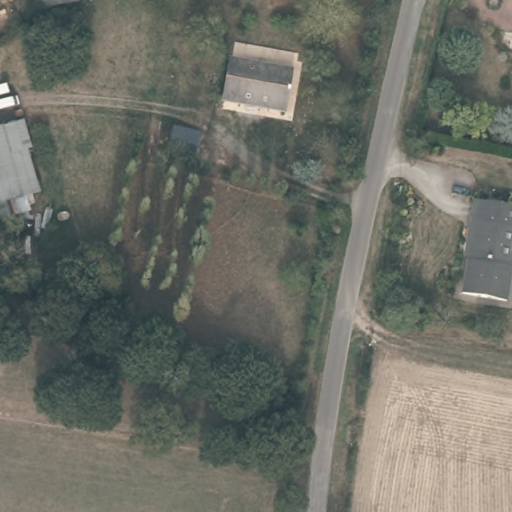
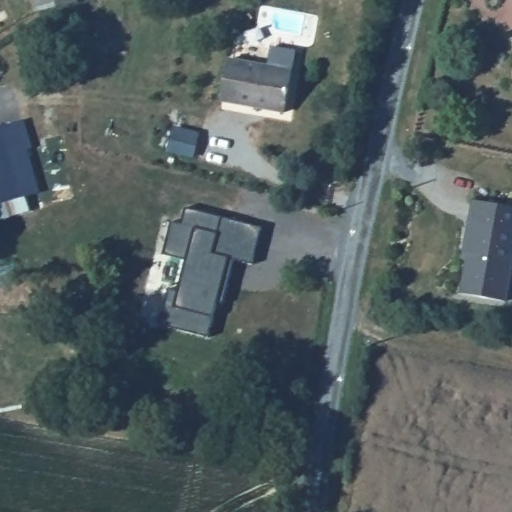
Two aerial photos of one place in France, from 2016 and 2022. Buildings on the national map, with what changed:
unchanged [(31,18),(27,2),(27,0),(66,0),(69,9),(31,18)]
unchanged [(290,115),(221,106),(226,65),(292,73),(290,115)]
unchanged [(20,128),(40,196),(0,210),(0,134),(20,128)]
unchanged [(477,231),(472,230),(477,207),(512,213),(512,310),(466,302),(477,231)]
new [(172,222),(182,224),(187,208),(262,226),(254,263),(235,258),(222,304),(217,303),(209,337),(162,323),(170,289),(180,291),(187,260),(164,254),(172,222)]

